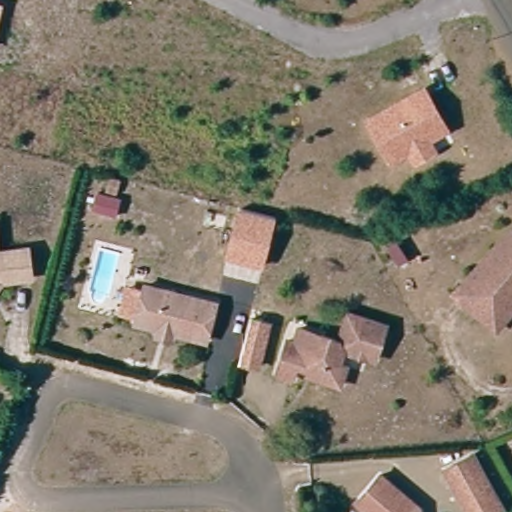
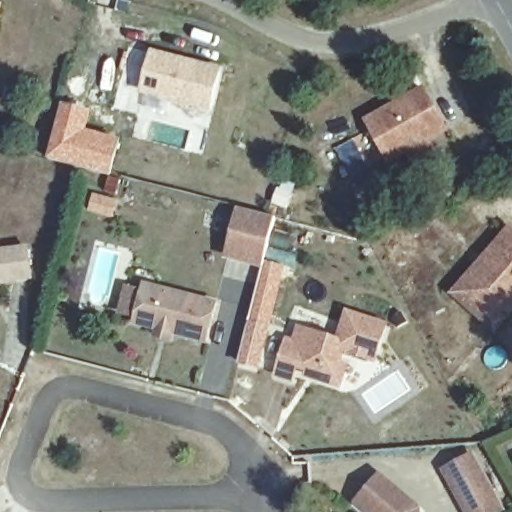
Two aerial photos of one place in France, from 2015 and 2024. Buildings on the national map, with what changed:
unchanged [(0,3),(3,4),(0,16),(0,3)]
new [(139,94),(150,49),(222,67),(211,112),(139,94)]
unchanged [(368,122),(424,90),(446,130),(391,162),(368,122)]
new [(122,139),(111,176),(47,159),(64,102),(92,111),(87,130),(122,139)]
unchanged [(117,195),(107,192),(111,177),(122,181),(117,195)]
unchanged [(117,217),(93,211),(97,194),(121,200),(117,217)]
unchanged [(262,268),(225,259),(236,207),(277,215),(262,268)]
unchanged [(458,292),(472,277),(510,232),(512,234),(512,310),(509,313),(497,327),(458,292)]
unchanged [(0,250),(26,247),(31,278),(5,282),(0,288),(0,250)]
unchanged [(152,337),(152,330),(130,324),(141,286),(211,302),(200,340),(172,334),(169,342),(152,337)]
unchanged [(277,368),(283,349),(287,337),(300,340),(302,328),(323,333),(338,337),(346,311),(385,323),(372,361),(342,351),(338,363),(345,367),(339,383),(312,374),(312,366),(296,362),(291,374),(277,368)]
unchanged [(270,321),(258,365),(239,361),(251,315),(270,321)]
unchanged [(468,512),(467,511),(444,469),(465,453),(491,496),(498,510),(495,512),(468,512)]
unchanged [(421,512),(366,512),(355,502),(381,473),(420,506),(421,512)]

